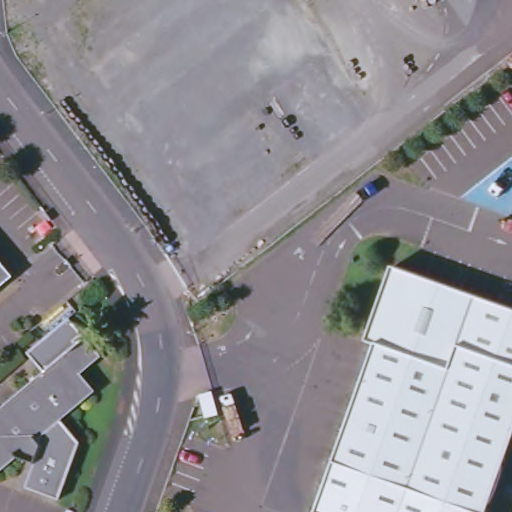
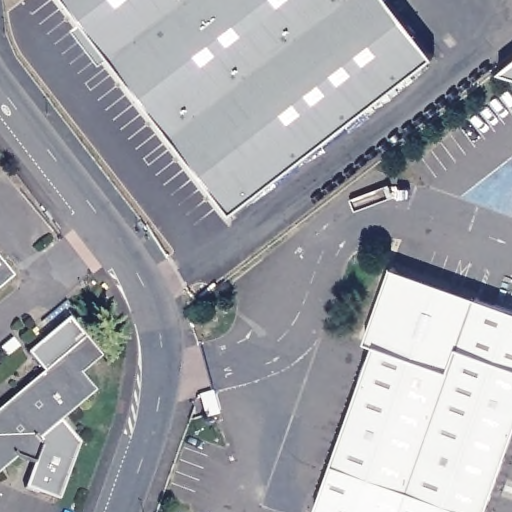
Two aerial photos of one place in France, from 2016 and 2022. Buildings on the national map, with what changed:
new [(435,54),(232,212),(67,0),(392,0),(435,54)]
demolished [(222,207),(187,162),(246,118),(280,165),(222,207)]
unchanged [(10,273),(8,285),(0,292),(0,261),(10,273)]
unchanged [(366,346),(397,271),(512,312),(512,442),(489,512),(317,512),(372,348),(366,346)]
unchanged [(62,505),(27,495),(32,470),(16,460),(0,475),(0,411),(41,376),(25,357),(66,321),(100,360),(79,378),(93,395),(60,424),(78,446),(62,505)]
unchanged [(193,395),(201,393),(207,413),(199,416),(193,395)]

